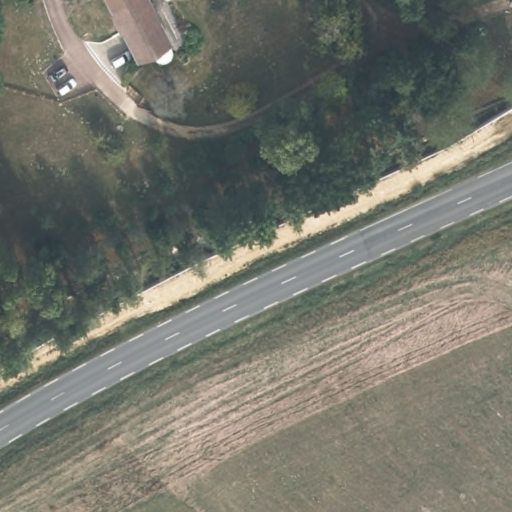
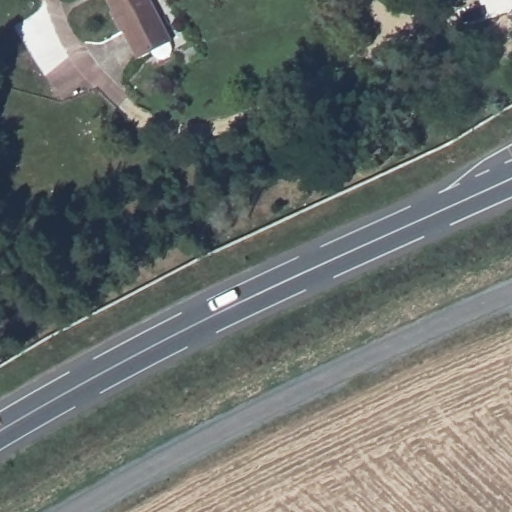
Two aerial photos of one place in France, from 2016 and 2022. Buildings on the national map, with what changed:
unchanged [(122,28),(119,29),(108,8),(111,6),(108,0),(149,0),(169,41),(136,56),(122,28)]

